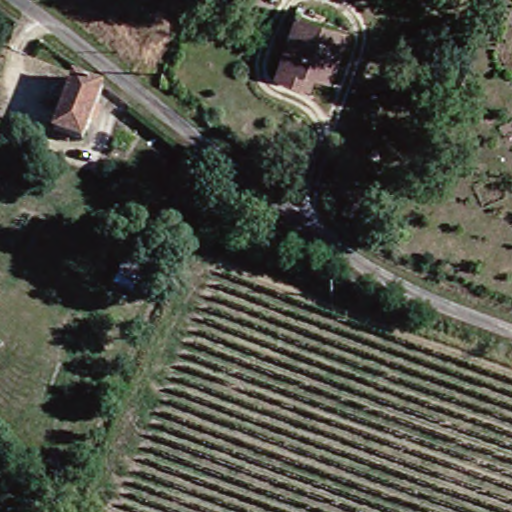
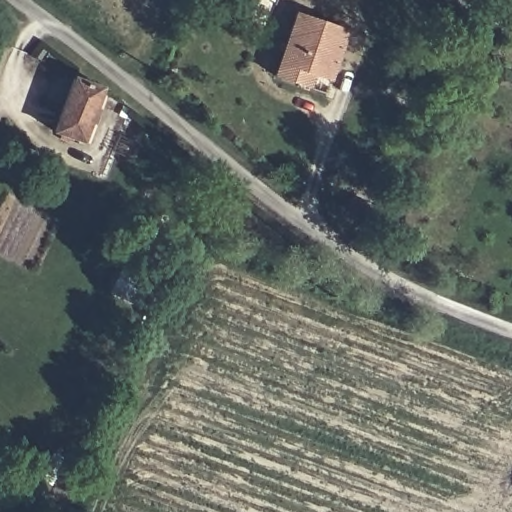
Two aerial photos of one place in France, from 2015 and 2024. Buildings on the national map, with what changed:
unchanged [(291,15),(339,29),(323,84),(306,79),(302,96),(270,86),(291,15)]
unchanged [(81,141),(56,126),(80,82),(104,96),(81,141)]

